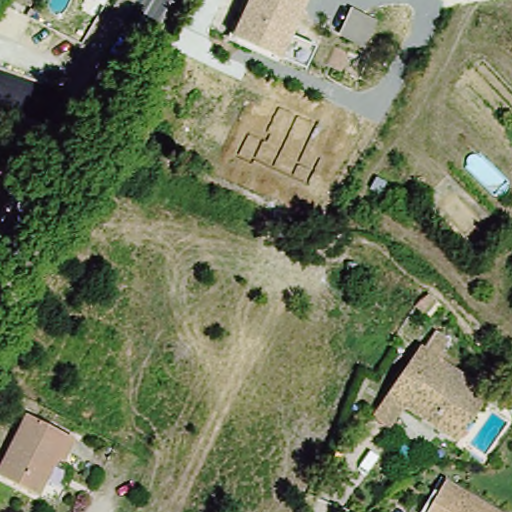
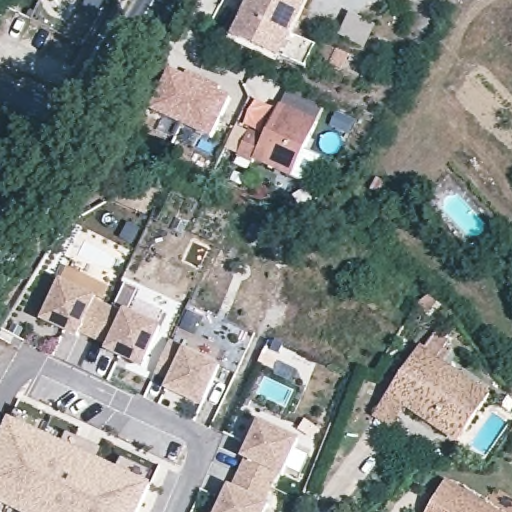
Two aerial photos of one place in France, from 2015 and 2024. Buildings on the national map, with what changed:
unchanged [(309,0),(292,34),(317,47),(305,72),(233,37),(252,0),(309,0)]
unchanged [(363,43),(328,26),(339,3),(374,22),(363,43)]
unchanged [(152,64),(208,95),(188,130),(133,98),(152,64)]
unchanged [(239,126),(256,133),(268,105),(300,119),(275,176),(226,154),(239,126)]
unchanged [(489,256),(479,262),(474,256),(483,250),(489,256)]
new [(81,328),(79,332),(43,315),(61,276),(96,293),(94,297),(110,305),(96,335),(81,328)]
new [(110,305),(125,312),(127,307),(163,324),(145,363),(109,346),(110,342),(96,335),(110,305)]
new [(171,340),(186,347),(189,343),(224,359),(206,398),(170,381),(172,378),(157,371),(171,340)]
unchanged [(415,406),(397,436),(376,423),(422,347),(493,389),(472,427),(465,437),(415,406)]
new [(1,505),(0,508),(0,440),(5,429),(2,428),(12,406),(40,419),(36,430),(59,440),(63,432),(108,452),(104,460),(127,471),(132,461),(160,474),(150,495),(147,493),(138,512),(16,512),(1,505)]
demolished [(38,490),(0,469),(0,466),(32,412),(75,437),(66,452),(62,449),(56,460),(38,490)]
new [(248,455),(245,453),(261,417),(300,435),(283,470),(279,468),(272,484),(241,470),(248,455)]
new [(272,484),(265,500),(269,502),(264,512),(218,512),(231,483),(234,485),(241,470),(272,484)]
unchanged [(441,481),(506,512),(427,512),(441,481)]

